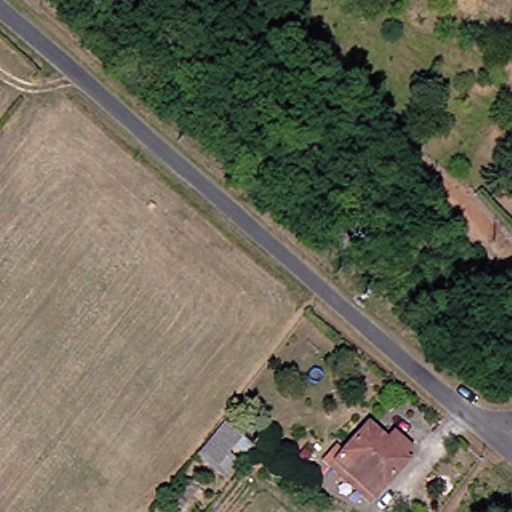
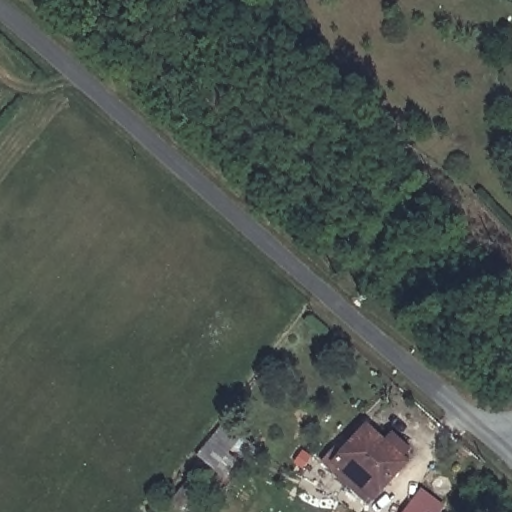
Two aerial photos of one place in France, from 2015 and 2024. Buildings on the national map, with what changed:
unchanged [(360,422),(370,429),(387,443),(404,456),(408,459),(412,462),(377,507),(327,468),(339,453),(360,422)]
unchanged [(243,436),(229,455),(239,463),(226,479),(197,460),(227,424),(243,436)]
unchanged [(206,488),(192,507),(180,498),(193,480),(206,488)]
new [(422,488),(446,505),(440,512),(404,512),(422,488)]

